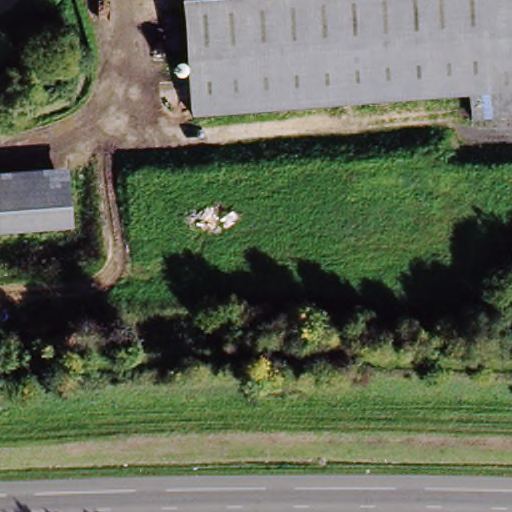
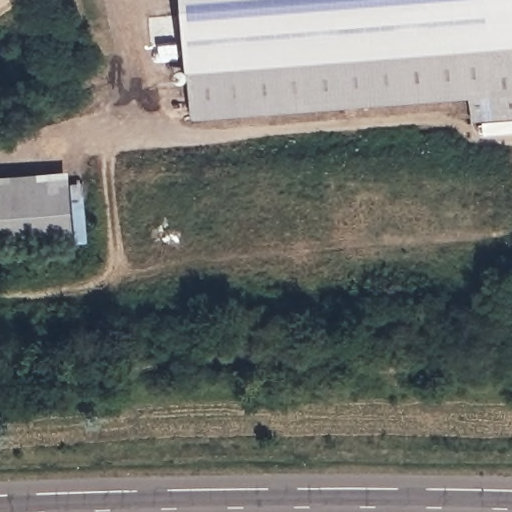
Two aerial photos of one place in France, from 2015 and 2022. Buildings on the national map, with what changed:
unchanged [(512,0),(512,1),(512,87),(442,93),(192,111),(191,107),(183,0),(512,0)]
unchanged [(67,163),(72,225),(0,230),(0,168),(67,163)]

